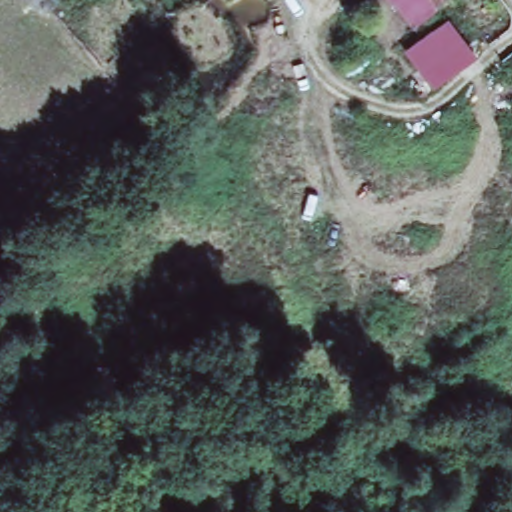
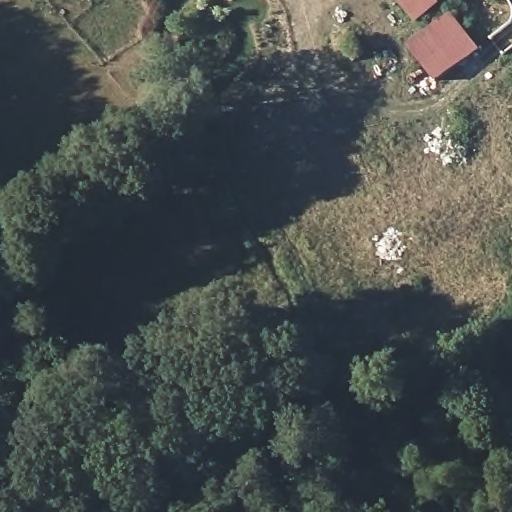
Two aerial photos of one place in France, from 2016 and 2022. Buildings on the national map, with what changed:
unchanged [(396,0),(448,0),(419,26),(396,0)]
unchanged [(435,84),(410,48),(453,16),(478,51),(435,84)]
unchanged [(229,95),(216,82),(246,55),(260,67),(229,95)]

